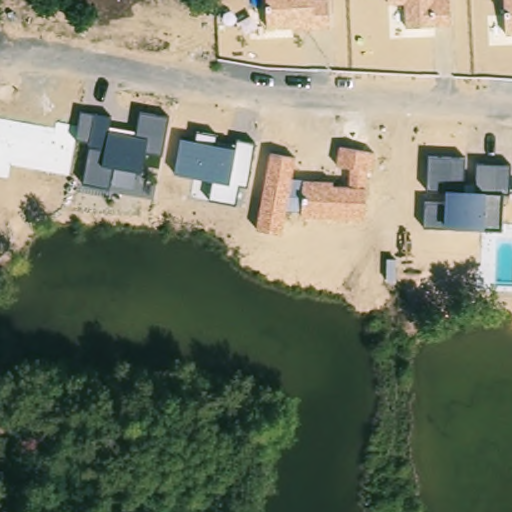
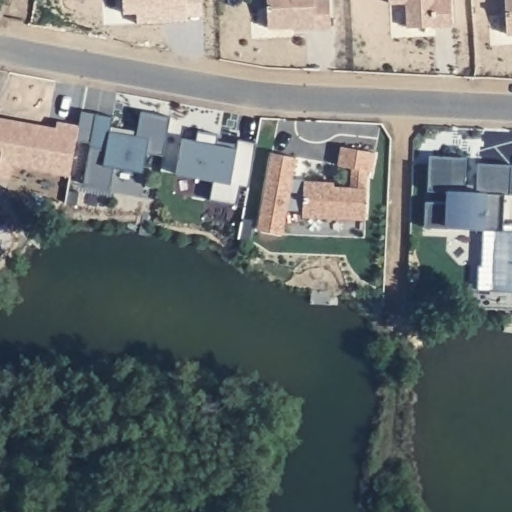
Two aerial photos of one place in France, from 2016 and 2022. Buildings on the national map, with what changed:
unchanged [(267,0),(327,0),(328,26),(267,28),(267,0)]
unchanged [(403,4),(388,3),(388,0),(449,0),(449,26),(404,27),(403,4)]
unchanged [(503,0),(512,0),(512,34),(504,34),(503,0)]
unchanged [(91,146),(88,146),(89,142),(76,140),(82,113),(95,115),(113,117),(110,128),(136,133),(140,113),(168,120),(161,155),(147,151),(143,170),(137,170),(133,193),(84,183),(91,146)]
new [(0,119),(55,131),(57,123),(79,127),(76,140),(68,176),(10,166),(8,178),(0,176),(0,119)]
unchanged [(212,180),(175,173),(181,138),(197,142),(198,133),(216,134),(215,145),(234,149),(235,140),(254,144),(248,185),(240,185),(236,204),(209,199),(212,180)]
unchanged [(272,153),(295,158),(292,180),(332,181),(332,185),(349,187),(351,168),(337,165),(340,146),(373,154),(371,169),(366,169),(364,220),(300,215),(300,211),(285,209),(281,234),(257,229),(272,153)]
unchanged [(426,201),(445,201),(446,189),(428,190),(429,155),(464,157),(462,190),(476,190),(477,164),(509,166),(508,194),(503,194),(500,229),(424,228),(426,201)]

